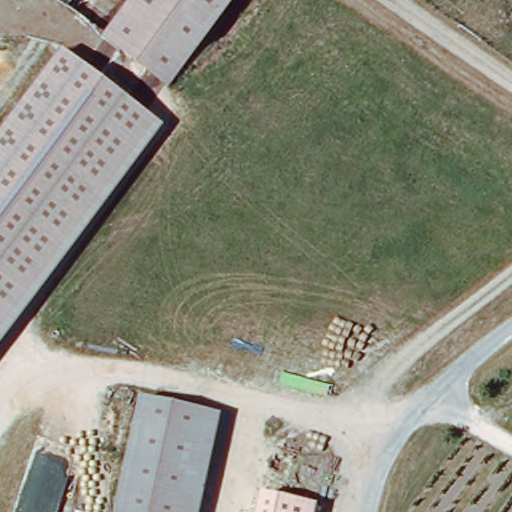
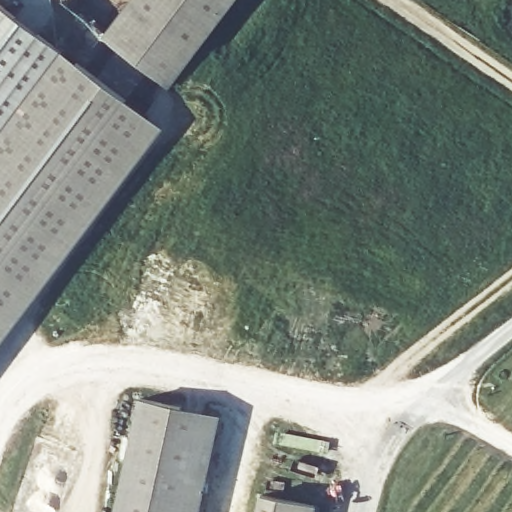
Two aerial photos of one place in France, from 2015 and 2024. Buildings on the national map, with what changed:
unchanged [(170,85),(104,36),(131,0),(234,0),(170,85)]
new [(0,133),(0,1),(65,49),(0,133)]
unchanged [(164,126),(0,340),(0,133),(65,49),(164,126)]
unchanged [(220,412),(197,512),(116,512),(139,397),(220,412)]
unchanged [(317,504),(315,512),(257,512),(261,493),(317,504)]

